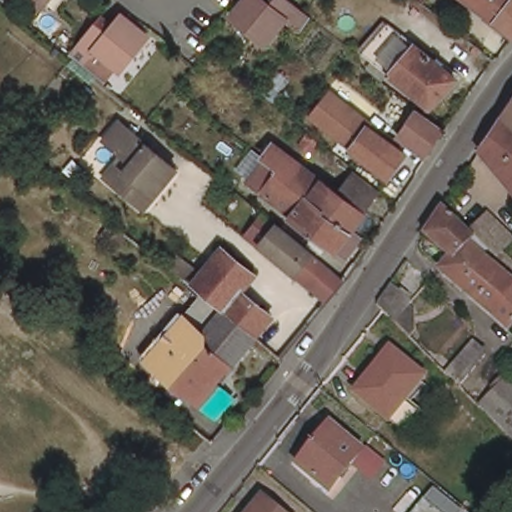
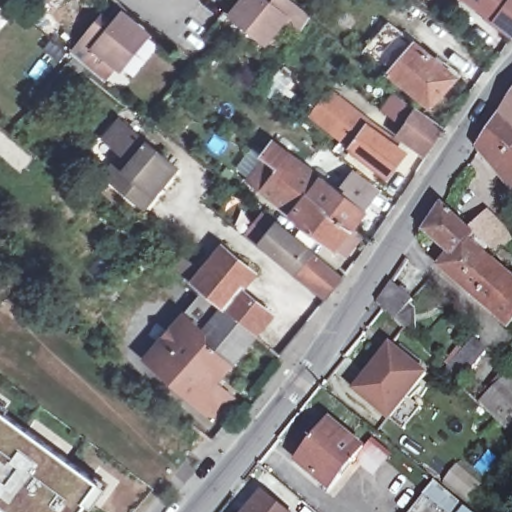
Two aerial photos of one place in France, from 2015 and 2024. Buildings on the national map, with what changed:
unchanged [(42,4),(37,0),(45,0),(42,4)]
unchanged [(310,13),(292,40),(275,26),(265,40),(230,12),(240,0),(294,0),(310,13)]
unchanged [(511,30),(472,0),(512,0),(512,31),(511,30)]
unchanged [(127,15),(129,15),(131,15),(152,32),(125,67),(100,47),(87,62),(74,51),(102,15),(115,26),(123,16),(125,18),(127,15)]
unchanged [(432,105),(365,50),(387,21),(457,77),(432,105)]
unchanged [(370,125),(405,152),(389,176),(352,147),(354,145),(314,116),(331,94),(371,123),(370,125)]
unchanged [(512,98),(512,117),(505,109),(512,98)]
unchanged [(483,141),(505,109),(512,117),(512,175),(483,141)]
unchanged [(421,110),(447,127),(430,152),(405,134),(421,110)]
unchanged [(140,202),(115,181),(105,172),(113,162),(124,172),(134,160),(106,136),(120,119),(177,166),(155,194),(145,205),(140,202)]
unchanged [(302,142),(310,131),(320,139),(310,150),(302,142)]
unchanged [(319,239),(288,216),(290,214),(265,195),(245,180),(263,156),(259,154),(270,140),(338,194),(343,187),(340,184),(350,171),(372,190),(357,209),(360,211),(347,228),(356,234),(340,255),(331,249),(319,239)]
unchanged [(455,255),(429,231),(446,202),(473,230),(490,212),(500,223),(497,226),(508,238),(510,240),(496,254),(495,252),(489,258),(465,284),(444,266),(455,255)]
unchanged [(308,288),(295,277),(282,266),(283,265),(275,258),(274,260),(241,232),(258,212),(292,240),(299,246),(312,256),(325,267),(308,288)]
unchanged [(190,287),(221,247),(254,274),(241,290),(223,312),(190,287)]
unchanged [(510,324),(496,312),(465,284),(489,258),(512,279),(512,321),(510,324)]
unchanged [(390,313),(384,306),(399,285),(421,305),(402,324),(390,313)]
unchanged [(230,317),(223,312),(241,290),(272,316),(254,337),(230,317)]
unchanged [(222,391),(232,400),(215,421),(195,403),(197,401),(155,362),(192,323),(210,340),(230,318),(230,317),(254,337),(220,376),(229,383),(222,391)]
unchanged [(462,384),(449,371),(474,341),(489,352),(462,384)]
unchanged [(405,423),(392,412),(357,386),(392,342),(425,370),(409,391),(422,401),(405,423)]
unchanged [(505,375),(512,381),(512,439),(476,402),(505,375)]
new [(87,512),(11,512),(7,509),(5,512),(0,512),(0,411),(107,487),(87,512)]
unchanged [(344,460),(325,481),(299,460),(332,420),(364,446),(350,465),(344,460)]
unchanged [(478,429),(485,421),(497,433),(490,440),(478,429)]
new [(374,438),(394,452),(375,477),(357,462),(374,438)]
new [(458,462),(480,480),(465,498),(440,483),(458,462)]
unchanged [(289,512),(250,512),(266,493),(289,512)]
unchanged [(460,506),(455,512),(429,512),(445,493),(460,506)]

